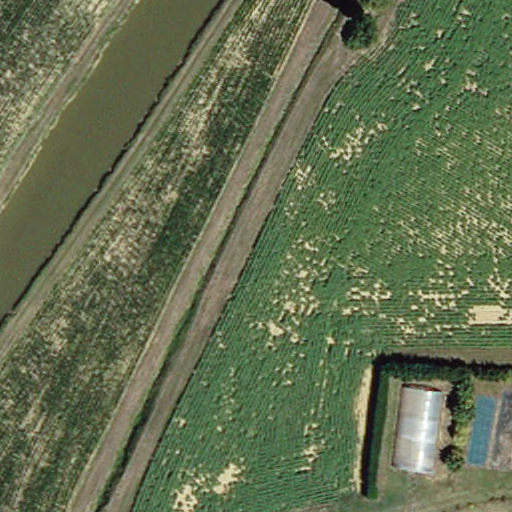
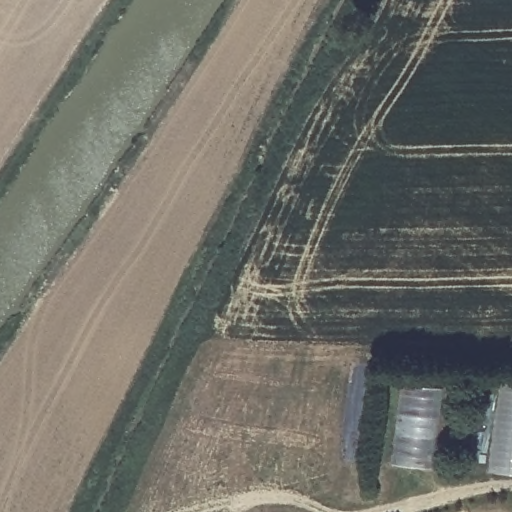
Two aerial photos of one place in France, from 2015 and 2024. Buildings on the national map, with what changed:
new [(505,378),(512,379),(512,472),(492,470),(505,378)]
unchanged [(395,385),(439,390),(429,469),(388,464),(395,385)]

